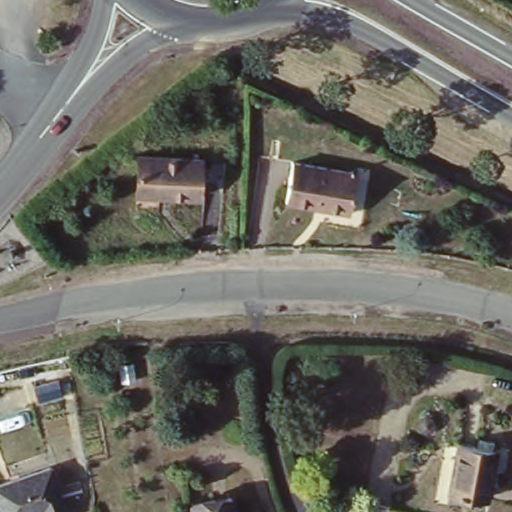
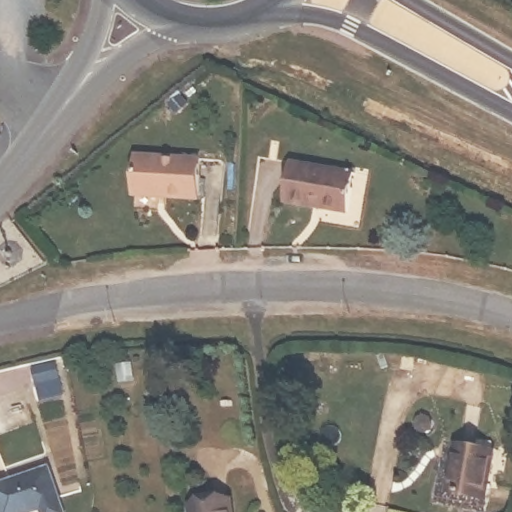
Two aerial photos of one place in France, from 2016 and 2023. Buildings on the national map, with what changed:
unchanged [(199,160),(196,198),(133,195),(136,158),(199,160)]
unchanged [(353,173),(348,212),(284,206),(288,166),(353,173)]
unchanged [(495,455),(484,502),(447,497),(457,448),(495,455)]
unchanged [(59,512),(0,512),(0,488),(48,472),(59,512)]
unchanged [(188,506),(229,500),(231,512),(189,512),(188,506)]

